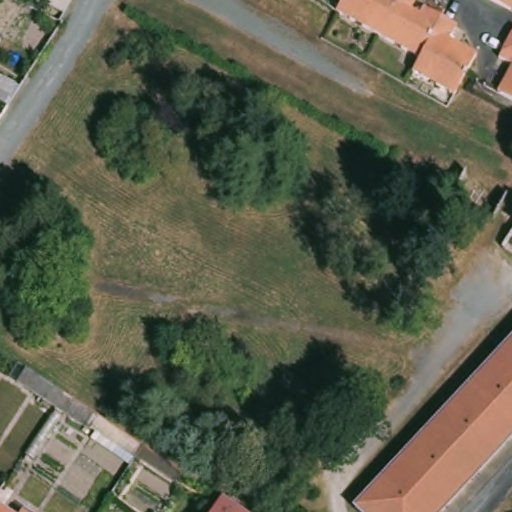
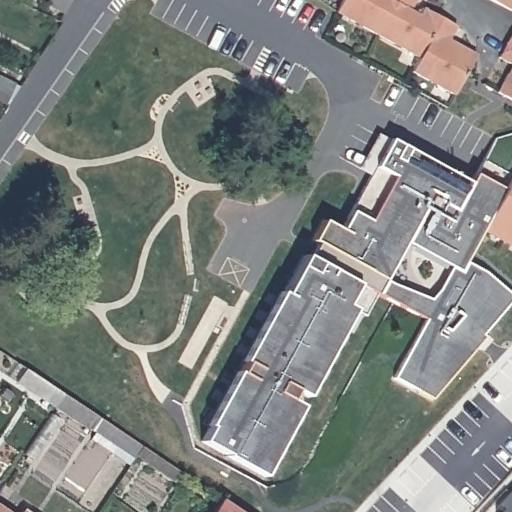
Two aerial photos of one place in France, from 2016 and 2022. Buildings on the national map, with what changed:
unchanged [(410,8),(420,13),(423,6),(455,23),(449,36),(476,51),(466,72),(455,91),(412,68),(419,54),(337,10),(343,0),(414,0),(410,8)]
unchanged [(512,23),(511,24),(471,4),(473,0),(512,0),(512,23)]
unchanged [(506,60),(498,55),(501,50),(512,31),(512,96),(493,83),(506,60)]
unchanged [(26,97),(15,119),(0,112),(0,85),(26,97)]
new [(316,244),(312,241),(324,220),(342,229),(390,138),(471,182),(476,172),(506,186),(512,175),(512,246),(482,230),(465,262),(485,272),(512,296),(512,300),(483,335),(484,336),(431,399),(393,377),(425,319),(378,294),(367,314),(355,308),(308,395),(296,388),(291,398),(302,404),(265,473),(204,439),(212,425),(209,423),(281,290),(285,292),(304,254),(310,257),(316,244)]
demolished [(455,199),(470,172),(502,189),(511,194),(497,221),(472,208),(455,199)]
demolished [(512,249),(512,255),(509,252),(512,249)]
demolished [(442,512),(362,512),(357,507),(457,400),(512,343),(512,439),(493,458),(442,512)]
new [(183,472),(175,482),(134,457),(129,464),(89,437),(93,431),(16,382),(26,367),(183,472)]
demolished [(96,446),(61,423),(25,398),(33,383),(39,386),(71,407),(107,431),(96,446)]
demolished [(182,497),(141,469),(149,458),(174,474),(191,485),(182,497)]
new [(512,490),(512,512),(499,512),(494,508),(512,490)]
unchanged [(2,503),(0,507),(0,501),(2,503)]
unchanged [(245,512),(224,512),(230,502),(245,512)]
unchanged [(16,512),(0,512),(0,507),(2,503),(16,512)]
unchanged [(39,512),(25,512),(29,505),(39,512)]

